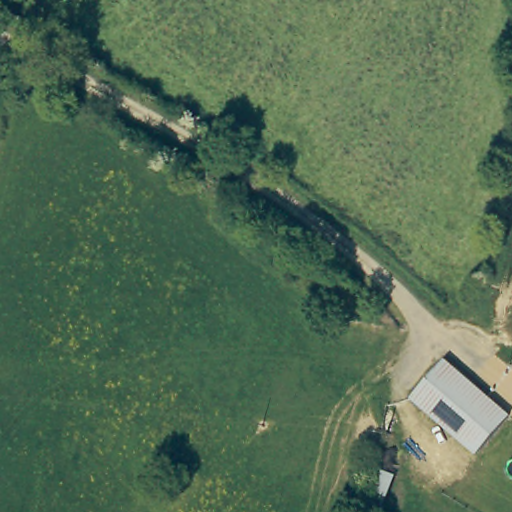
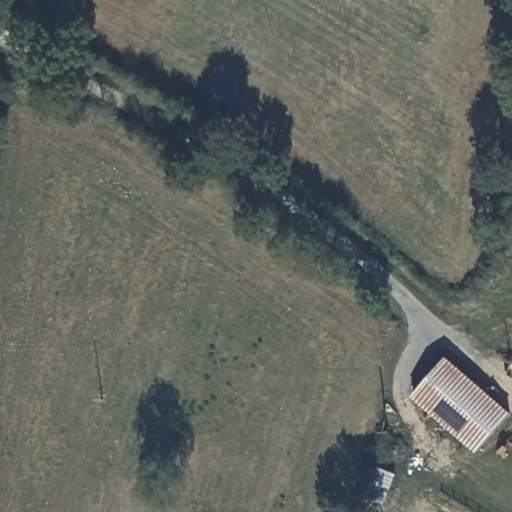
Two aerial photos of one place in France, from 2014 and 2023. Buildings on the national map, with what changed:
unchanged [(487,395),(508,413),(477,451),(413,397),(444,359),(487,395)]
unchanged [(371,458),(389,465),(378,496),(359,490),(371,458)]
unchanged [(385,512),(366,512),(371,498),(387,505),(385,512)]

